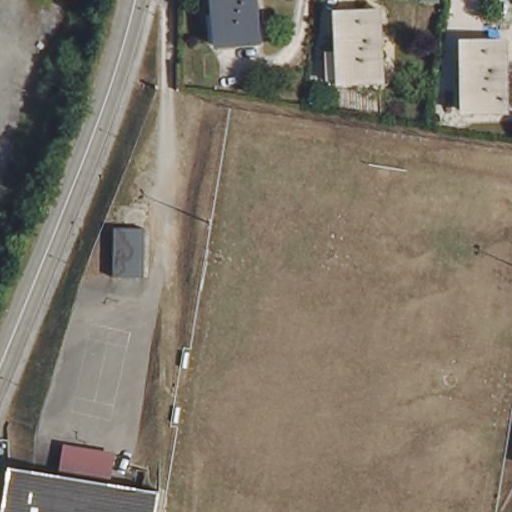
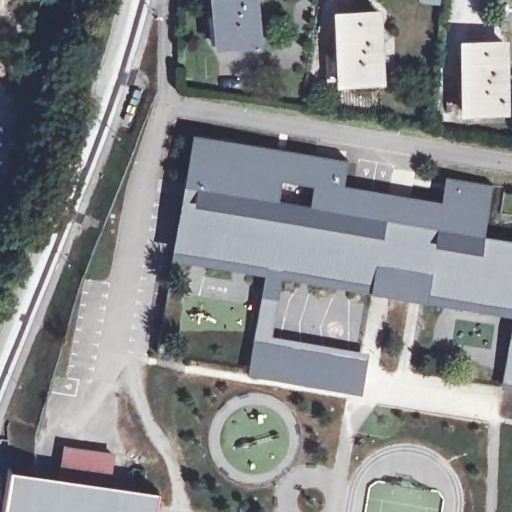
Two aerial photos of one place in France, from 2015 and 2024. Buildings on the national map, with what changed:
unchanged [(48,0),(73,0),(73,5),(48,2),(48,0)]
unchanged [(257,44),(216,47),(211,0),(253,0),(257,44)]
unchanged [(372,14),(375,81),(334,82),(332,15),(372,14)]
unchanged [(493,49),(499,110),(459,114),(452,53),(493,49)]
new [(348,159),(344,185),(441,200),(444,175),(492,184),(484,235),(512,240),(512,317),(282,278),(272,335),(368,352),(360,393),(246,373),(265,275),(170,258),(192,132),(348,159)]
demolished [(147,228),(145,277),(114,276),(115,227),(147,228)]
new [(512,325),(512,383),(502,382),(512,325)]
unchanged [(62,444),(112,453),(107,488),(154,497),(152,512),(0,512),(0,503),(5,472),(56,481),(62,444)]

